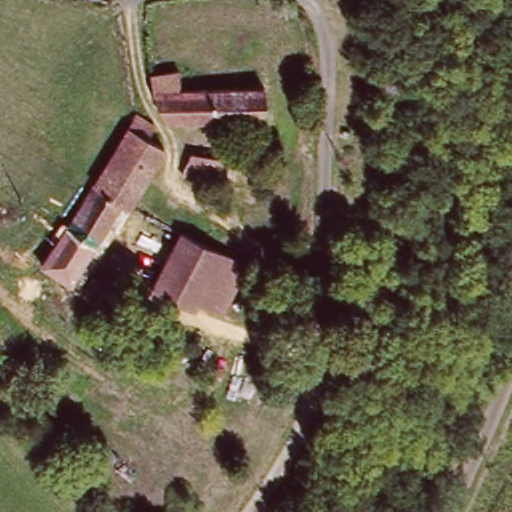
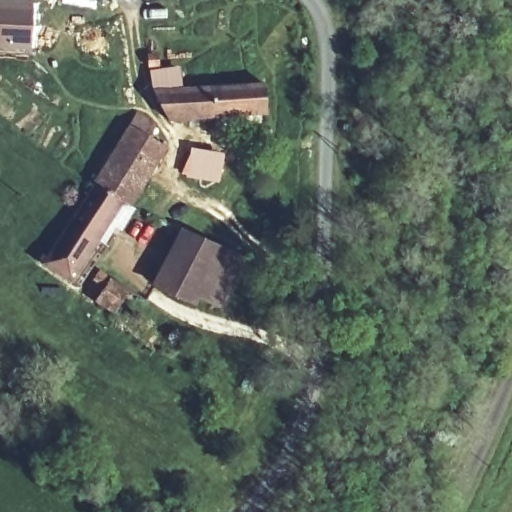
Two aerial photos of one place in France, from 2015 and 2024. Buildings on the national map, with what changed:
new [(30,54),(0,53),(0,0),(33,0),(30,54)]
unchanged [(176,93),(261,84),(264,112),(168,122),(158,106),(153,90),(149,75),(174,72),(176,93)]
unchanged [(158,119),(150,133),(167,143),(136,202),(94,175),(139,106),(158,119)]
unchanged [(189,172),(193,153),(249,164),(246,183),(189,172)]
unchanged [(97,292),(99,288),(68,269),(75,259),(50,243),(94,175),(136,202),(128,216),(118,209),(85,264),(99,272),(102,268),(143,292),(130,314),(97,292)]
unchanged [(215,308),(206,301),(200,308),(153,285),(178,229),(256,264),(244,287),(229,280),(215,308)]

